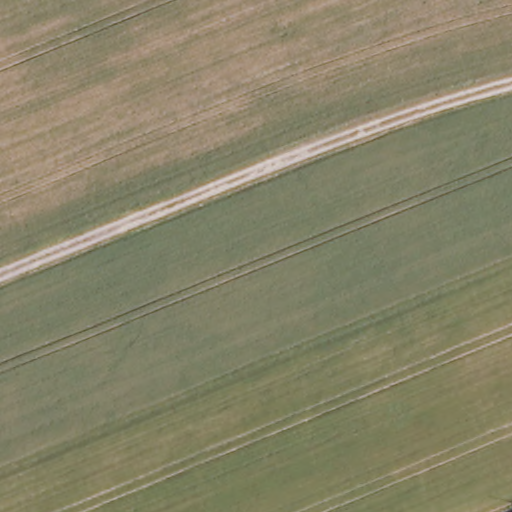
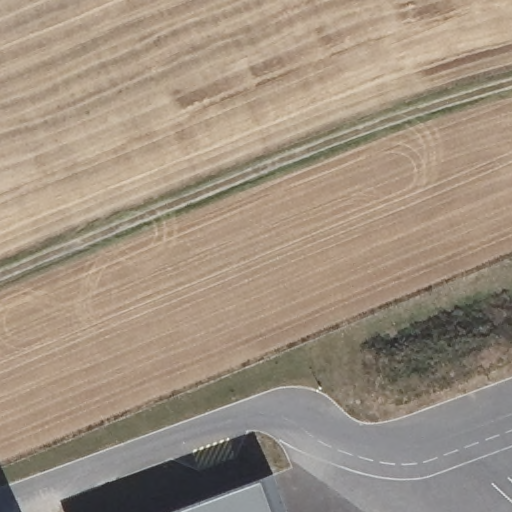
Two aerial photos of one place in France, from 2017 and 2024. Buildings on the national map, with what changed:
new [(286,512),(174,512),(272,475),(286,512)]

